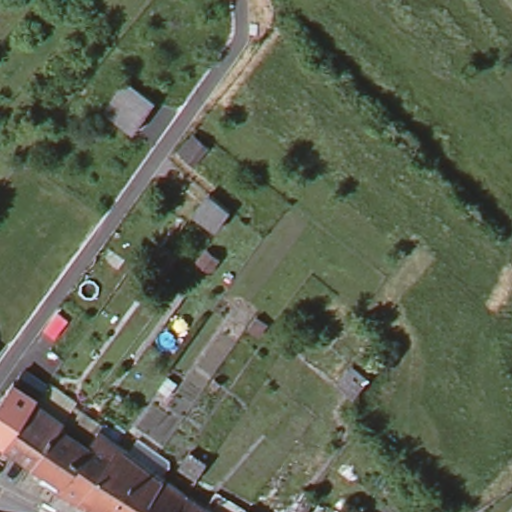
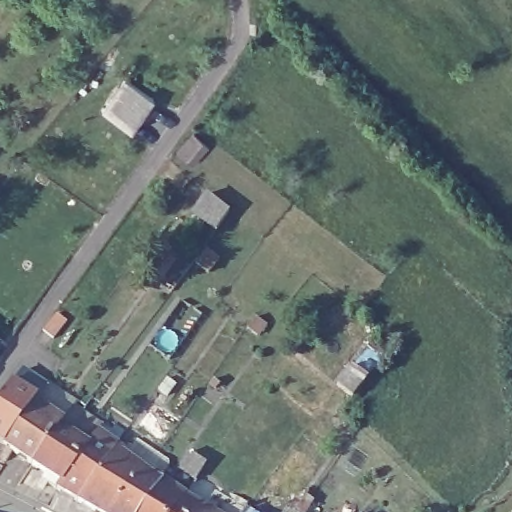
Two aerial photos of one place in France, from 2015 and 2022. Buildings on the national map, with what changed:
unchanged [(152,99),(130,132),(100,111),(122,79),(152,99)]
unchanged [(207,147),(191,164),(177,151),(192,133),(207,147)]
unchanged [(228,208),(213,229),(191,211),(207,190),(228,208)]
unchanged [(174,253),(160,272),(147,263),(161,244),(174,253)]
unchanged [(217,256),(208,268),(195,259),(205,246),(217,256)]
unchanged [(263,322),(256,333),(246,327),(255,316),(263,322)]
unchanged [(58,349),(45,368),(28,356),(40,337),(58,349)]
unchanged [(366,375),(350,396),(334,384),(350,363),(366,375)]
unchanged [(56,491),(54,490),(59,483),(32,466),(3,447),(2,446),(0,445),(0,400),(11,384),(12,386),(22,373),(42,388),(45,383),(58,392),(44,412),(61,424),(71,408),(98,427),(97,429),(116,445),(76,503),(56,491)]
unchanged [(157,480),(136,512),(92,512),(76,503),(116,445),(157,480)]
unchanged [(205,466),(194,481),(178,471),(187,455),(205,466)]
unchanged [(158,480),(183,496),(172,512),(136,512),(157,480),(158,480)]
unchanged [(183,496),(205,509),(216,496),(241,512),(172,512),(183,496)]
unchanged [(308,499),(312,502),(306,512),(297,512),(306,498),(308,499)]

